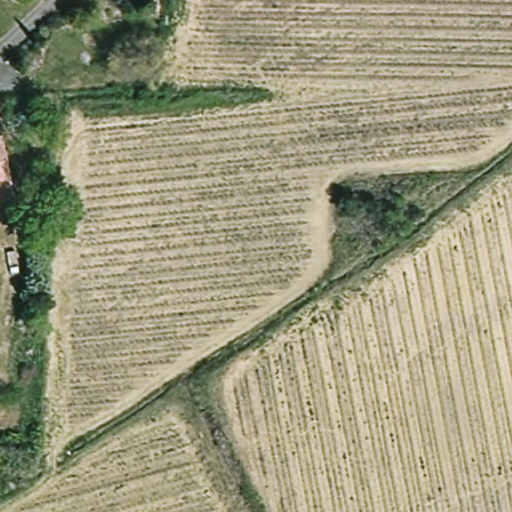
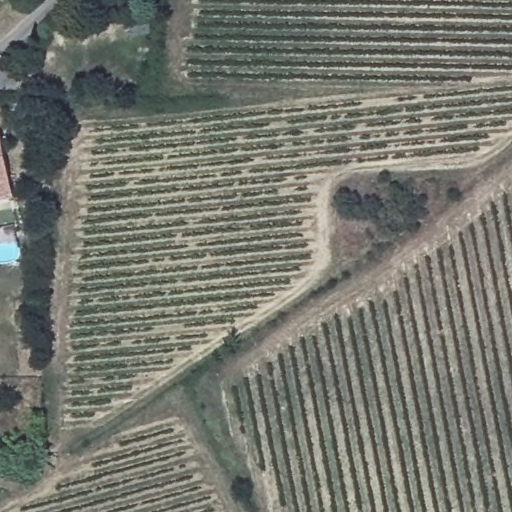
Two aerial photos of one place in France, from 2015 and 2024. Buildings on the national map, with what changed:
unchanged [(12,201),(0,204),(0,138),(12,201)]

